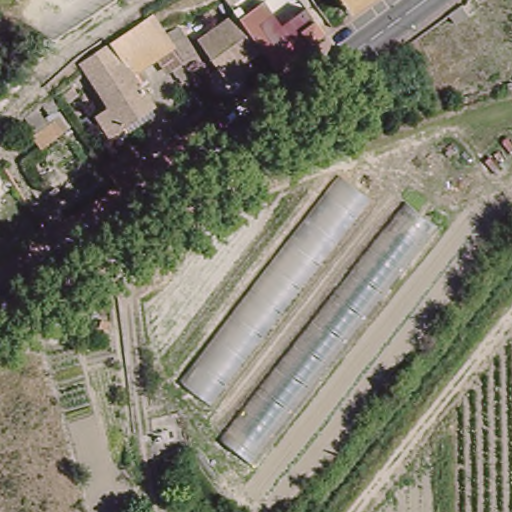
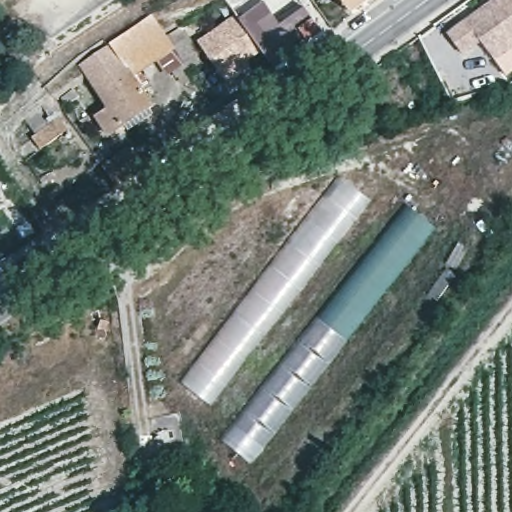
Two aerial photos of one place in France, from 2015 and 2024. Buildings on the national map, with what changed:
unchanged [(346,13),(338,0),(364,0),(346,13)]
new [(484,43),(465,56),(451,36),(500,0),(512,0),(512,71),(507,75),(484,43)]
unchanged [(309,11),(328,38),(281,73),(266,53),(245,21),(269,5),(284,28),(309,11)]
unchanged [(80,63),(151,16),(173,47),(181,59),(168,68),(159,56),(143,68),(151,81),(140,88),(148,101),(118,121),(104,131),(91,112),(106,102),(80,63)]
unchanged [(202,43),(241,16),(245,21),(266,53),(249,65),(247,63),(224,77),(202,43)]
unchanged [(39,147),(29,125),(57,109),(68,130),(39,147)]
unchanged [(110,158),(133,142),(146,160),(123,177),(110,158)]
unchanged [(338,175),(371,200),(208,400),(181,379),(338,175)]
unchanged [(436,228),(254,463),(221,436),(402,200),(436,228)]

